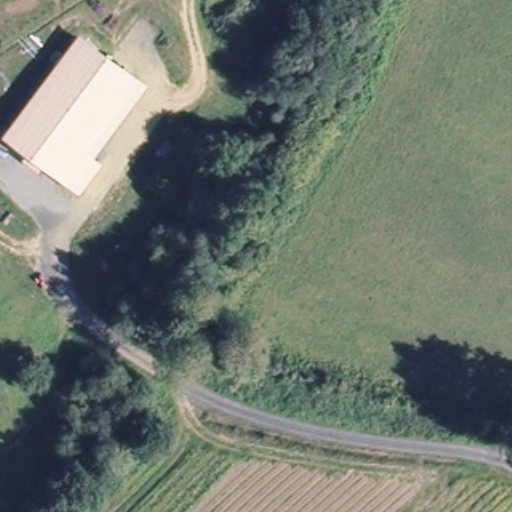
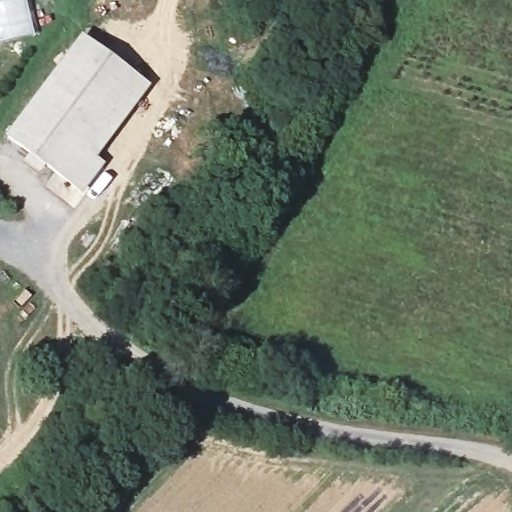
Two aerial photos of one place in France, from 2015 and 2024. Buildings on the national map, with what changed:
new [(0,43),(0,0),(26,0),(33,35),(0,43)]
unchanged [(80,194),(42,166),(39,172),(21,160),(25,154),(3,138),(79,35),(149,84),(95,157),(102,164),(80,194)]

